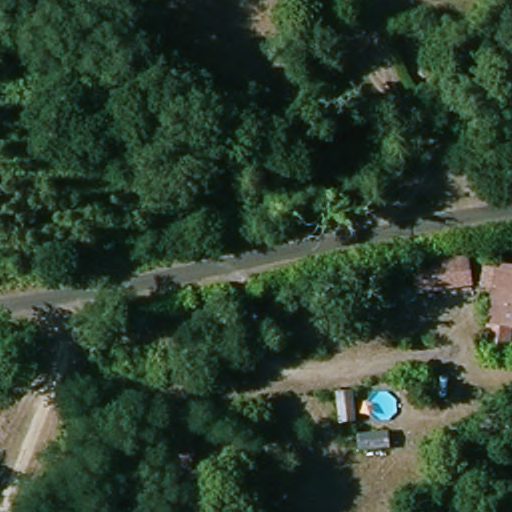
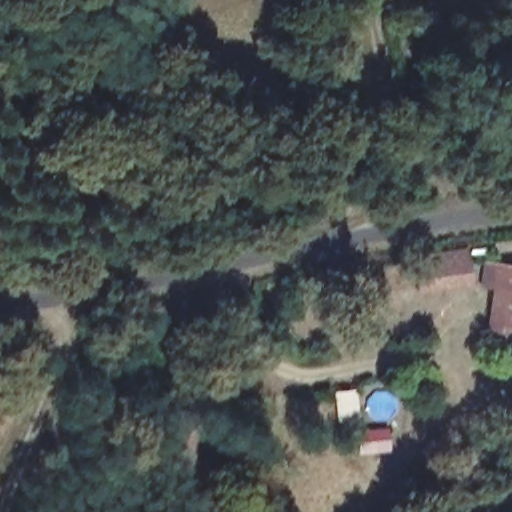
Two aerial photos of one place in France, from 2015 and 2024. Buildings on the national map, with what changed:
unchanged [(467,249),(473,284),(417,293),(411,258),(467,249)]
unchanged [(512,335),(485,331),(496,252),(512,254),(512,335)]
unchanged [(202,413),(190,468),(161,462),(174,407),(202,413)]

